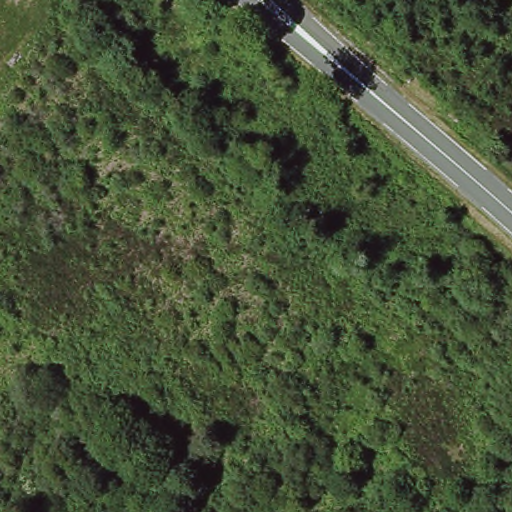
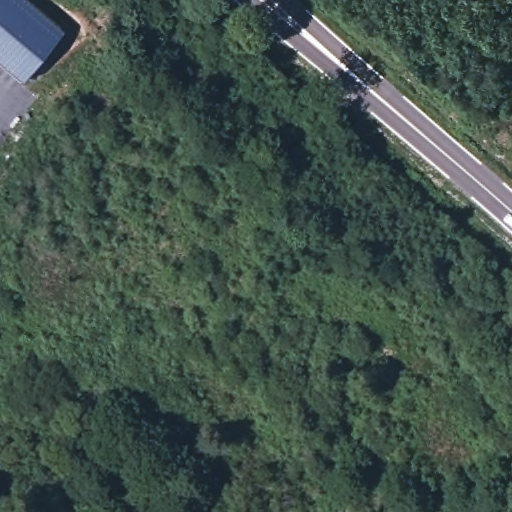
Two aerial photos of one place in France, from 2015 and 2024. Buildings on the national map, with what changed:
new [(21,81),(0,63),(0,0),(27,0),(63,31),(21,81)]
unchanged [(447,114),(438,125),(427,115),(437,106),(447,114)]

